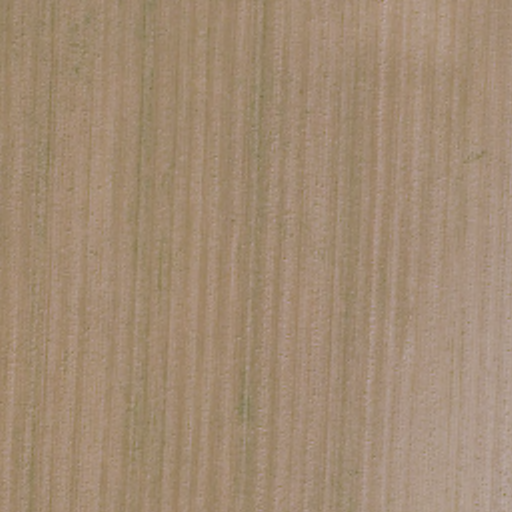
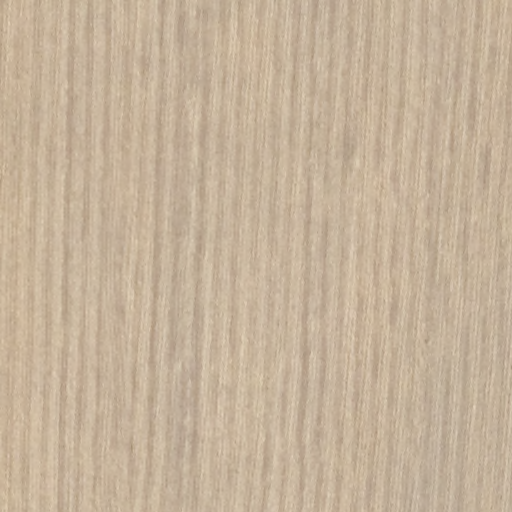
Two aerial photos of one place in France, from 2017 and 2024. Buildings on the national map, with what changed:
[]

